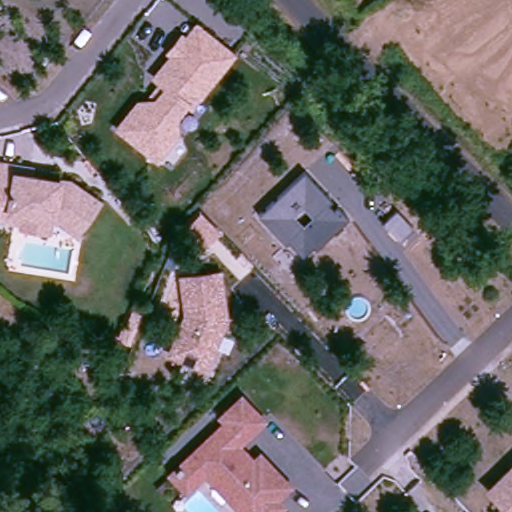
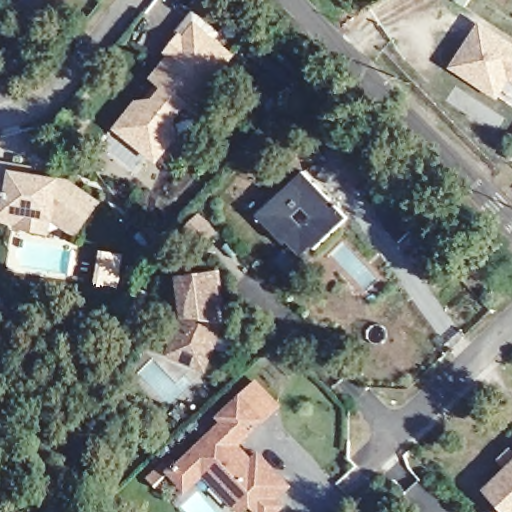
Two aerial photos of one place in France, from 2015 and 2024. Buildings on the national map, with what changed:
unchanged [(237,55),(192,113),(187,109),(177,122),(181,136),(159,164),(113,130),(169,57),(164,53),(181,32),(186,35),(197,22),(237,55)]
new [(512,81),(498,101),(448,68),(480,22),(512,43),(512,81)]
unchanged [(0,208),(0,166),(3,154),(26,159),(40,163),(37,169),(77,179),(102,205),(75,231),(57,212),(54,226),(26,219),(27,215),(0,208)]
unchanged [(304,169),(331,197),(327,200),(333,207),(337,204),(348,216),(316,246),(313,243),(302,253),(288,238),(285,241),(258,213),(277,196),(304,169)]
unchanged [(395,212),(412,231),(398,245),(381,226),(395,212)]
unchanged [(201,218),(219,236),(204,250),(187,232),(201,218)]
unchanged [(225,282),(225,321),(209,372),(172,360),(185,319),(187,282),(225,282)]
unchanged [(128,313),(139,318),(125,347),(122,351),(112,346),(128,313)]
unchanged [(189,460),(225,425),(220,420),(240,401),(262,423),(232,451),(242,462),(246,458),(252,465),(259,458),(288,489),(275,501),(282,509),(279,512),(257,512),(251,506),(245,512),(239,512),(202,474),(185,491),(171,477),(189,460)]
unchanged [(512,464),(512,512),(508,512),(486,489),(512,464)]

